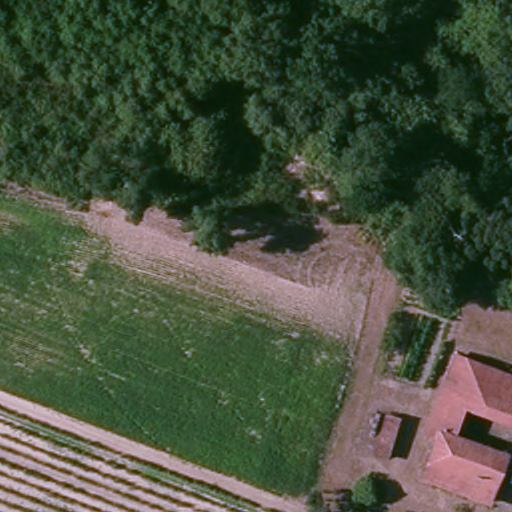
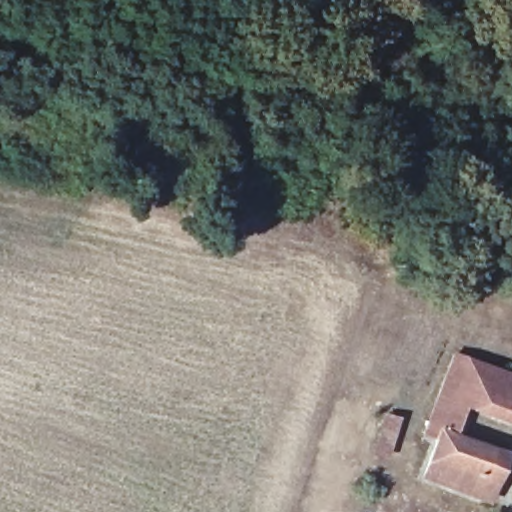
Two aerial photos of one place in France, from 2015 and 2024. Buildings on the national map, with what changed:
unchanged [(427,477),(441,436),(428,431),(447,377),(457,348),(512,368),(512,412),(483,404),(470,436),(500,446),(512,451),(512,471),(507,483),(500,503),(427,477)]
unchanged [(378,460),(377,459),(360,453),(372,419),(390,425),(378,460)]

